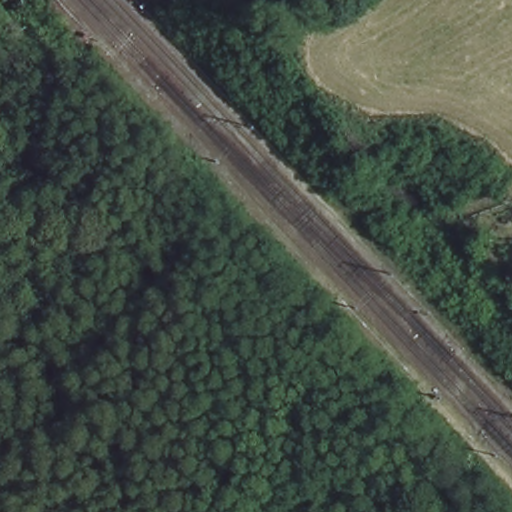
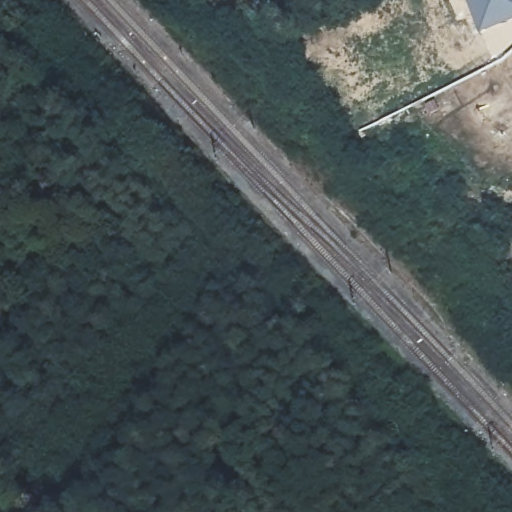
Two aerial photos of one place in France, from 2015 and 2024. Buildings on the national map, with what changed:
new [(478,34),(464,0),(512,0),(512,21),(478,34)]

